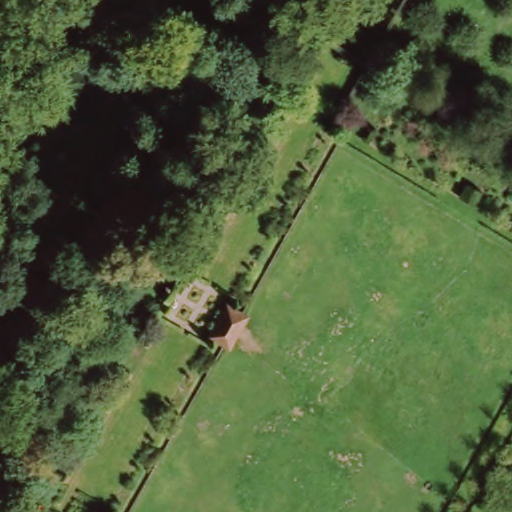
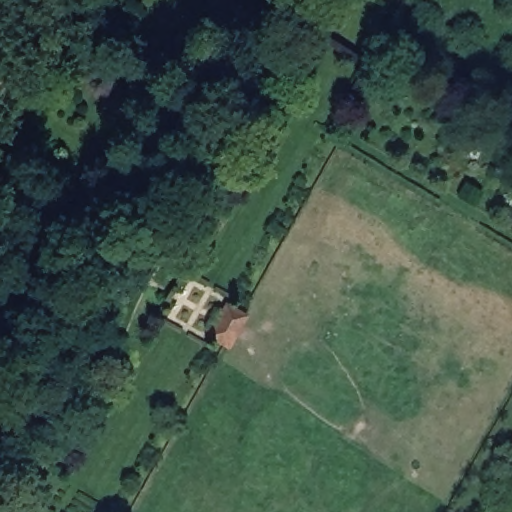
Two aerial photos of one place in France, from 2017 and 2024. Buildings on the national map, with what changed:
unchanged [(231,345),(206,333),(226,301),(251,313),(231,345)]

